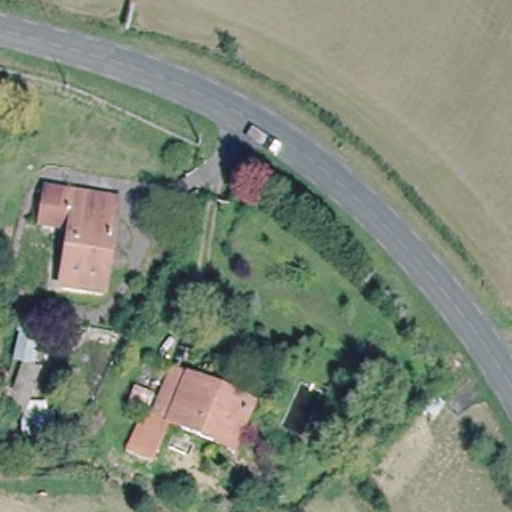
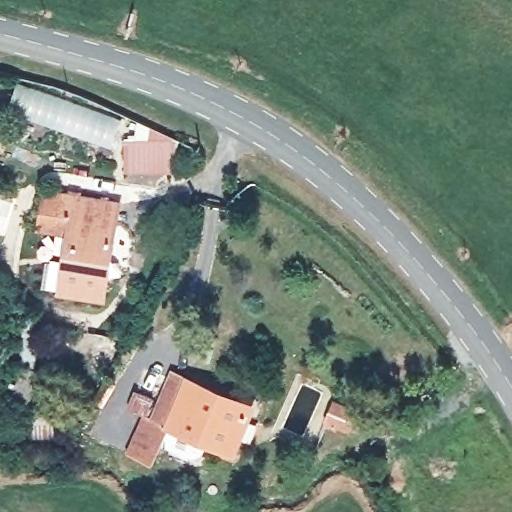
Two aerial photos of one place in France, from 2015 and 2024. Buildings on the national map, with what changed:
new [(122,120),(113,146),(7,110),(17,83),(122,120)]
new [(148,139),(152,126),(176,139),(176,171),(128,171),(126,138),(148,139)]
unchanged [(105,221),(116,224),(101,297),(59,289),(73,217),(48,212),(52,191),(109,202),(105,221)]
new [(7,201),(12,199),(14,202),(5,229),(0,227),(0,199),(7,201)]
unchanged [(41,330),(35,367),(42,371),(29,405),(48,404),(50,443),(24,442),(21,431),(24,417),(2,396),(5,390),(14,391),(22,366),(12,364),(20,328),(41,330)]
unchanged [(239,453),(168,425),(160,422),(179,378),(256,410),(239,453)]
unchanged [(160,422),(168,425),(161,445),(153,463),(127,453),(144,415),(160,422)]

